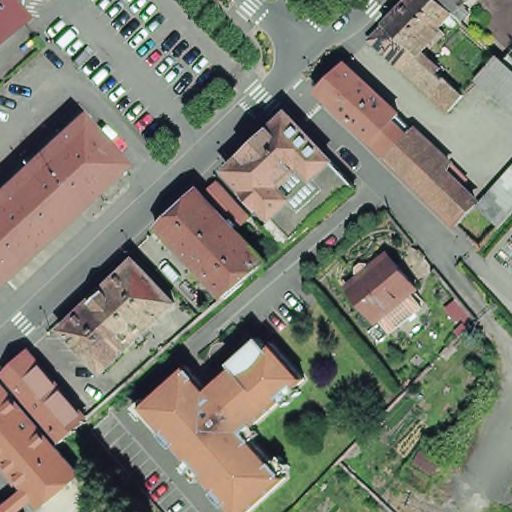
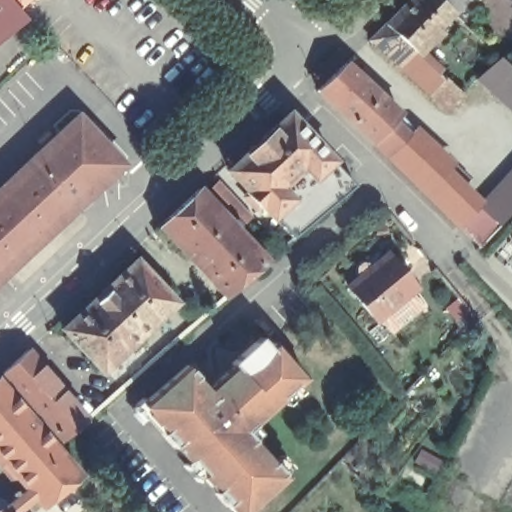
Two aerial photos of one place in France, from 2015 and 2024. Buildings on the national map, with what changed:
unchanged [(20,6),(25,12),(20,17),(0,33),(0,0),(21,0),(18,3),(20,6)]
unchanged [(425,92),(410,77),(403,72),(374,45),(389,30),(417,0),(437,0),(456,19),(420,57),(425,62),(432,69),(440,61),(454,74),(447,82),(467,100),(452,116),(434,100),(425,92)]
unchanged [(437,0),(474,0),(456,19),(437,0)]
unchanged [(510,70),(506,66),(512,59),(512,71),(510,70)]
unchanged [(506,66),(510,70),(512,71),(512,109),(483,82),(482,82),(503,62),(504,63),(506,66)]
unchanged [(400,114),(398,116),(372,144),(317,91),(345,64),(400,114)]
unchanged [(261,201),(260,200),(258,202),(240,183),(242,182),(227,165),(288,109),(332,155),(331,156),(354,180),(292,232),(280,242),(256,216),(250,210),(261,201)]
unchanged [(125,159),(0,275),(0,189),(83,112),(125,159)]
unchanged [(398,116),(450,165),(444,172),(424,194),(372,144),(398,116)]
unchanged [(499,226),(479,207),(512,171),(512,212),(499,226)]
unchanged [(444,172),(477,203),(457,225),(424,194),(444,172)]
unchanged [(217,182),(235,203),(225,212),(207,192),(217,182)]
unchanged [(198,189),(265,260),(267,261),(223,297),(223,296),(158,226),(198,189)]
unchanged [(347,292),(387,259),(415,292),(375,326),(347,292)]
unchanged [(140,260),(179,301),(107,371),(67,328),(140,260)]
unchanged [(292,462),(284,469),(287,473),(244,512),(239,512),(140,403),(185,362),(207,385),(215,378),(232,362),(230,360),(258,333),(268,343),(273,338),(305,373),(297,381),(302,387),(287,401),(282,395),(254,422),(261,429),(253,436),(274,458),(281,452),(292,462)]
unchanged [(90,421),(65,442),(7,377),(32,355),(90,421)]
unchanged [(25,498),(0,470),(0,385),(2,383),(57,446),(59,448),(85,478),(47,511),(39,503),(27,512),(7,512),(25,498)]

